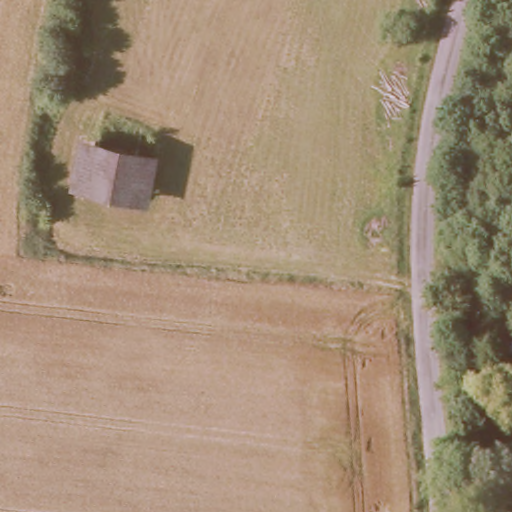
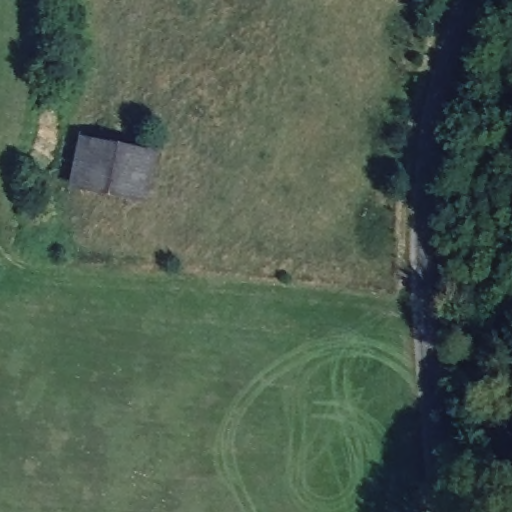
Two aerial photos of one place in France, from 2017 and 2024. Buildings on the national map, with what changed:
unchanged [(155,151),(147,203),(70,189),(78,134),(155,151)]

